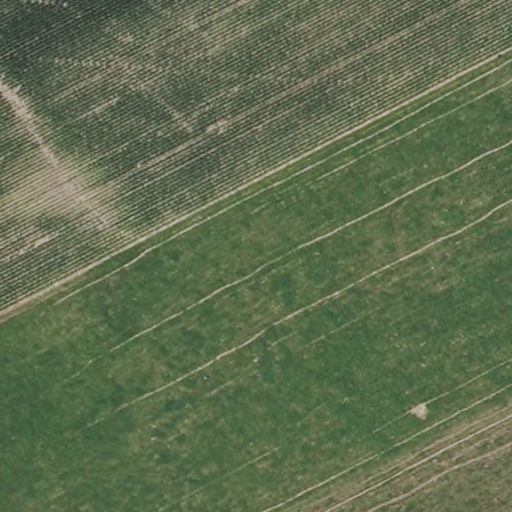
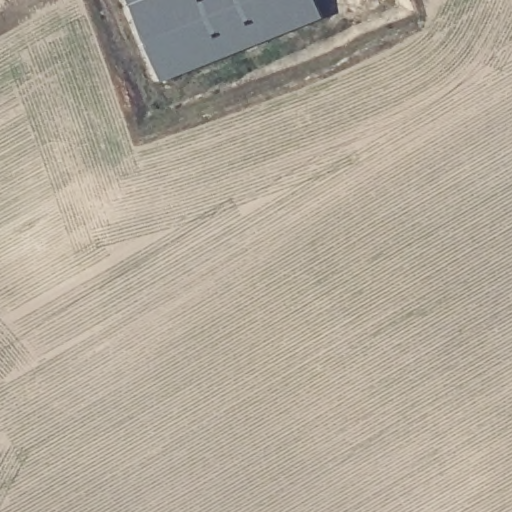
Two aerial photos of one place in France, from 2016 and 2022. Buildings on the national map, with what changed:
new [(129,0),(313,0),(320,17),(163,82),(129,0)]

